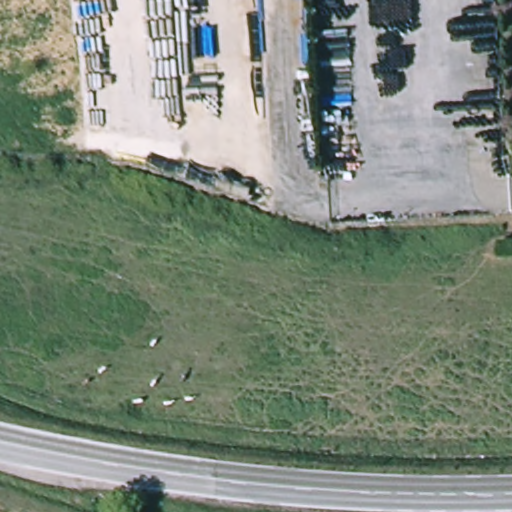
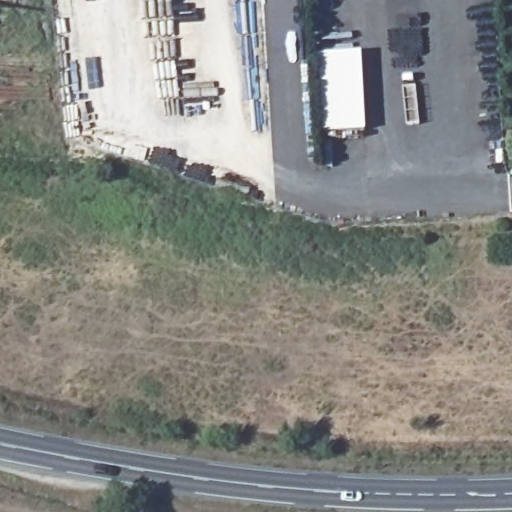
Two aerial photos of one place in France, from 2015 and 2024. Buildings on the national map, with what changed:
new [(320,55),(363,53),(367,132),(324,134),(320,55)]

